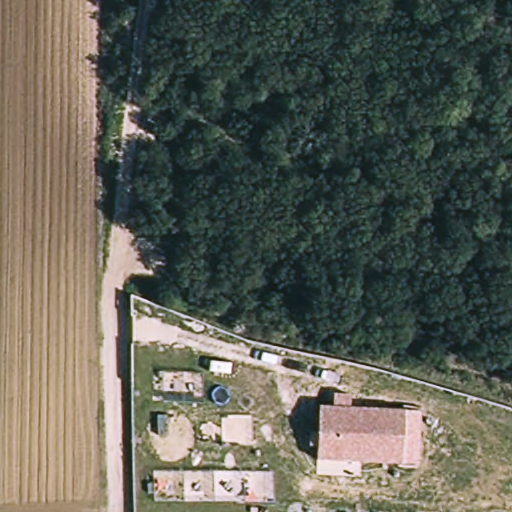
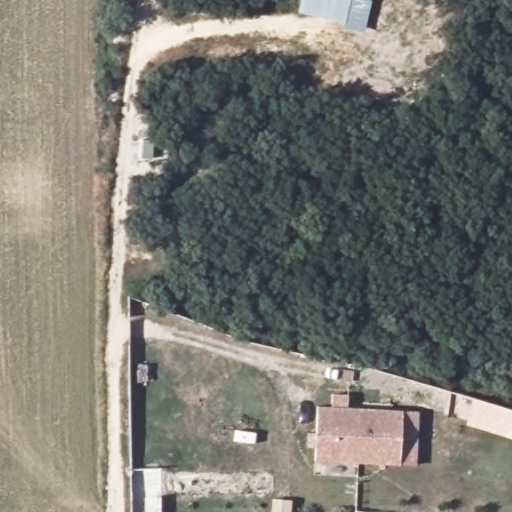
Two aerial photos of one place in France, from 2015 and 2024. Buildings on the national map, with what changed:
new [(345,23),(298,12),(300,0),(371,0),(363,31),(344,27),(345,23)]
unchanged [(420,410),(419,466),(404,464),(318,459),(320,406),(334,406),(334,393),(350,392),(352,407),(403,408),(420,410)]
new [(293,500),(293,512),(273,512),(274,499),(293,500)]

